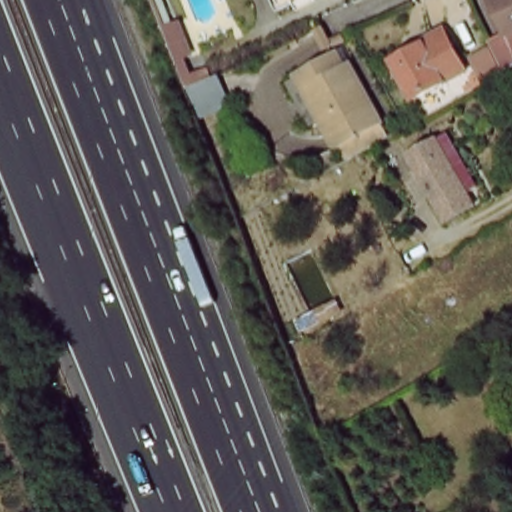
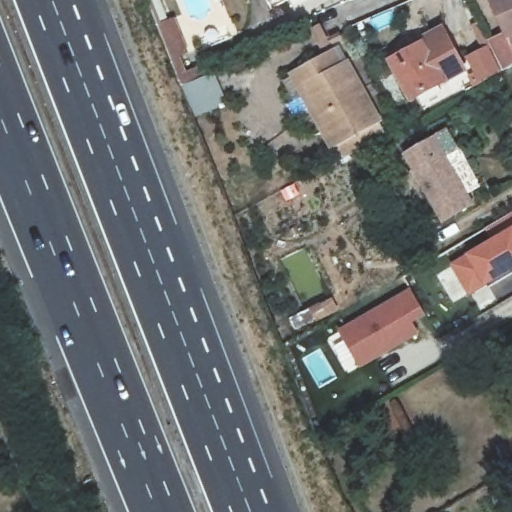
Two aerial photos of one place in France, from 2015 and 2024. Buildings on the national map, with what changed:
unchanged [(496,0),(512,0),(512,33),(496,0)]
unchanged [(168,31),(166,27),(181,23),(193,54),(178,60),(168,31)]
unchanged [(465,68),(415,96),(394,60),(446,32),(465,68)]
unchanged [(512,66),(500,45),(512,39),(512,66)]
unchanged [(354,141),(335,151),(289,68),(322,49),(329,64),(339,58),(377,128),(354,141)]
unchanged [(495,78),(488,81),(476,59),(495,49),(506,71),(495,78)]
unchanged [(215,78),(227,109),(200,121),(189,90),(215,78)]
unchanged [(472,206),(444,223),(405,157),(400,149),(427,133),(432,141),(435,140),(472,206)]
new [(466,256),(490,242),(485,230),(512,215),(512,271),(486,287),(470,297),(450,266),(466,256)]
new [(410,288),(426,317),(414,324),(420,335),(360,369),(340,331),(410,288)]
unchanged [(339,312),(330,317),(325,307),(335,303),(339,312)]

